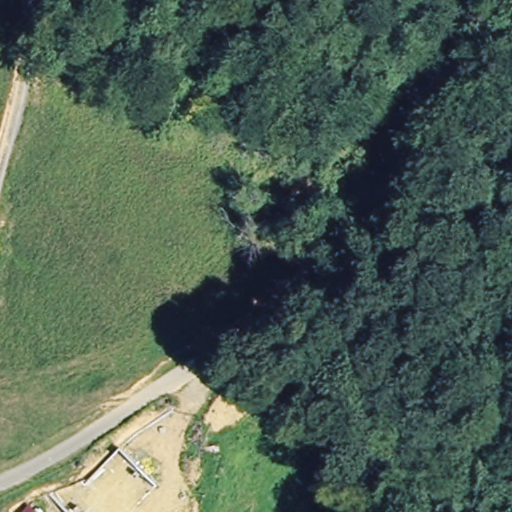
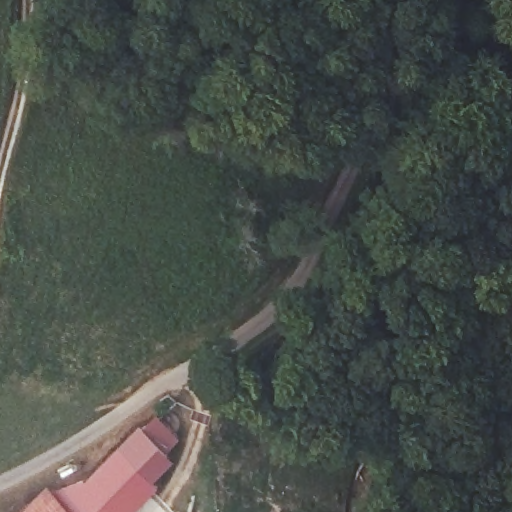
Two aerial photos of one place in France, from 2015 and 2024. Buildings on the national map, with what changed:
new [(53,493),(86,482),(139,426),(143,429),(156,416),(180,440),(167,451),(174,457),(154,481),(159,487),(135,512),(24,512),(47,487),(53,493)]

